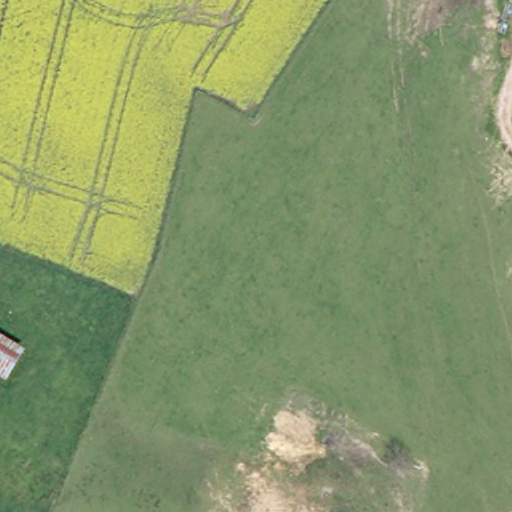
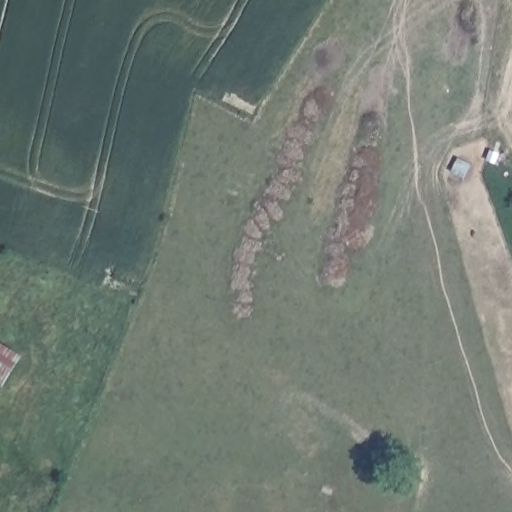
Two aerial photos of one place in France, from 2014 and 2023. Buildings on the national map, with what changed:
unchanged [(0,383),(0,344),(23,363),(5,387),(0,383)]

